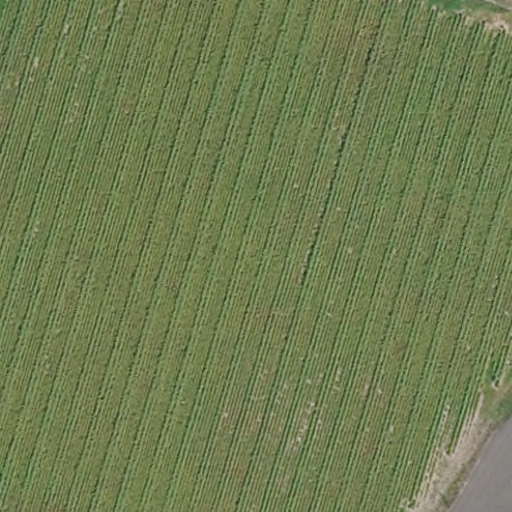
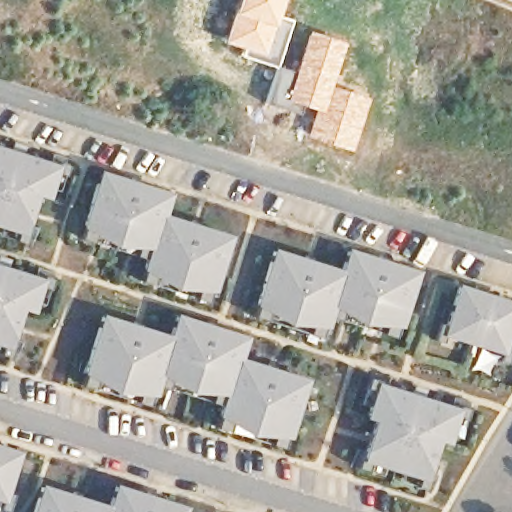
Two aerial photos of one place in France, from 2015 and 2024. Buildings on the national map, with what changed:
new [(295,18),(277,70),(238,56),(241,48),(222,43),(235,0),(282,0),(278,13),(295,18)]
new [(307,28),(345,40),(331,83),(370,93),(352,151),(305,137),(312,110),(283,100),(307,28)]
new [(48,196),(38,194),(26,231),(0,223),(0,146),(59,163),(48,196)]
new [(175,287),(142,266),(149,248),(116,246),(82,224),(99,168),(172,191),(165,212),(233,233),(215,289),(175,287)]
new [(364,324),(335,304),(327,326),(289,323),(256,300),(273,248),(340,269),(347,247),(420,269),(401,325),(364,324)]
new [(33,311),(25,308),(12,346),(0,343),(0,262),(46,276),(33,311)]
new [(457,283),(512,299),(512,328),(505,352),(443,333),(457,283)]
new [(286,438),(284,447),(219,426),(221,418),(217,416),(222,404),(159,385),(155,395),(152,395),(150,404),(84,383),(86,375),(82,373),(102,314),(168,336),(175,313),(248,337),(241,359),(308,380),(290,437),(286,438)]
new [(427,488),(357,467),(361,458),(362,460),(375,420),(366,417),(370,402),(365,402),(369,387),(371,378),(377,379),(377,382),(461,408),(469,409),(466,418),(459,415),(450,445),(440,442),(428,481),(427,488)]
new [(3,500),(0,499),(0,443),(20,449),(3,500)]
new [(41,483),(107,504),(115,482),(187,504),(185,512),(32,512),(41,483)]

